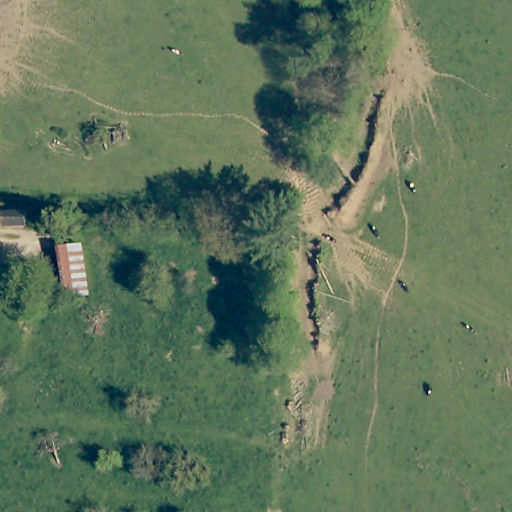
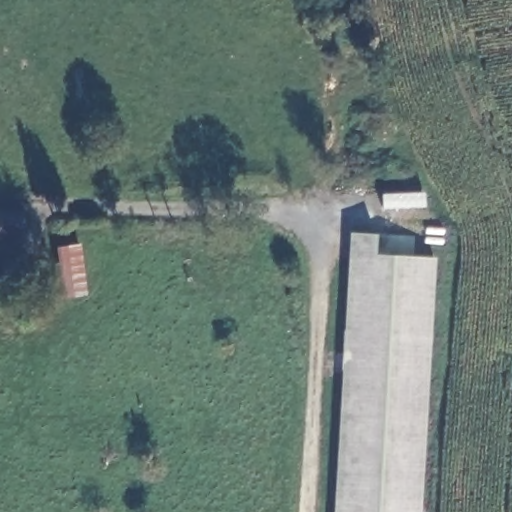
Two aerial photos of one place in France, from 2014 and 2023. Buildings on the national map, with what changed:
unchanged [(17,212),(17,226),(0,226),(0,213),(17,212)]
new [(421,512),(334,512),(350,232),(375,234),(374,254),(434,258),(421,512)]
unchanged [(86,291),(68,293),(64,245),(84,244),(86,291)]

